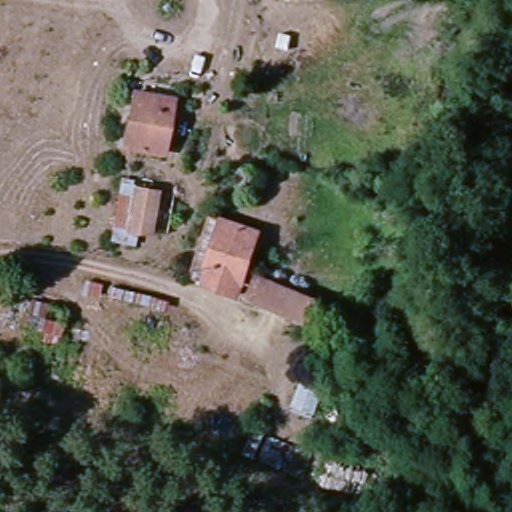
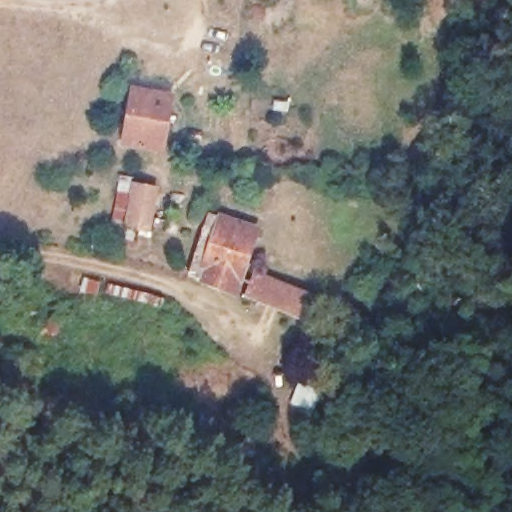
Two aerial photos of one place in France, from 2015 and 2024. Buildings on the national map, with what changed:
unchanged [(131,152),(134,94),(161,95),(167,96),(166,151),(151,151),(131,152)]
unchanged [(129,238),(129,197),(137,197),(154,197),(154,236),(137,238),(129,238)]
unchanged [(246,288),(188,275),(202,224),(257,234),(246,288)]
unchanged [(294,317),(253,309),(257,280),(297,289),(319,294),(315,319),(294,317)]
unchanged [(58,339),(55,349),(39,345),(42,335),(4,323),(13,294),(70,310),(65,324),(80,328),(77,342),(58,339)]
unchanged [(313,418),(282,405),(296,369),(326,379),(313,418)]

